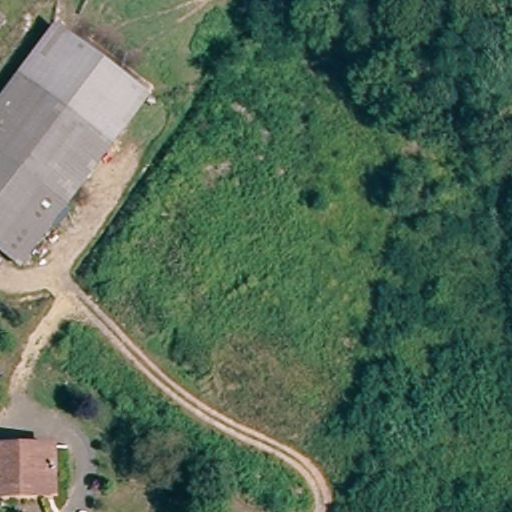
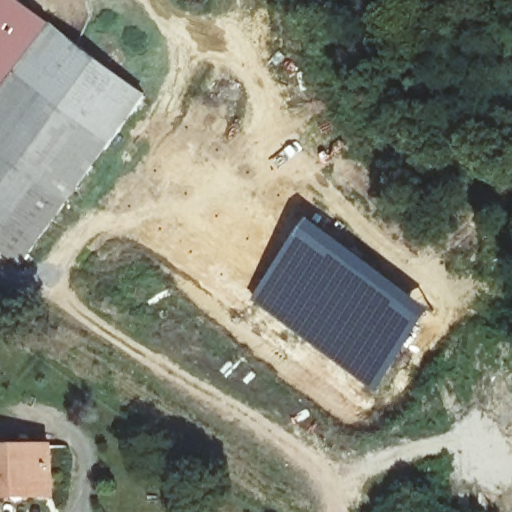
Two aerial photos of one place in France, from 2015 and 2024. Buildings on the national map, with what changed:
new [(0,98),(0,0),(20,0),(53,25),(0,98)]
unchanged [(53,25),(144,93),(63,203),(0,155),(0,98),(53,25)]
unchanged [(63,203),(20,264),(0,250),(0,155),(63,203)]
new [(311,218),(389,276),(431,310),(405,343),(371,391),(291,330),(250,297),(311,218)]
unchanged [(50,447),(49,497),(27,498),(0,498),(0,446),(50,447)]

